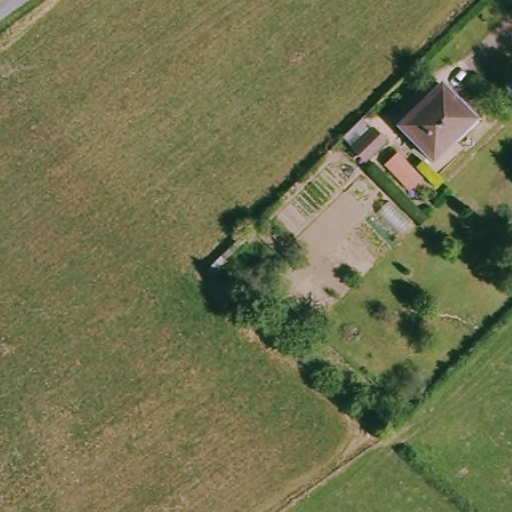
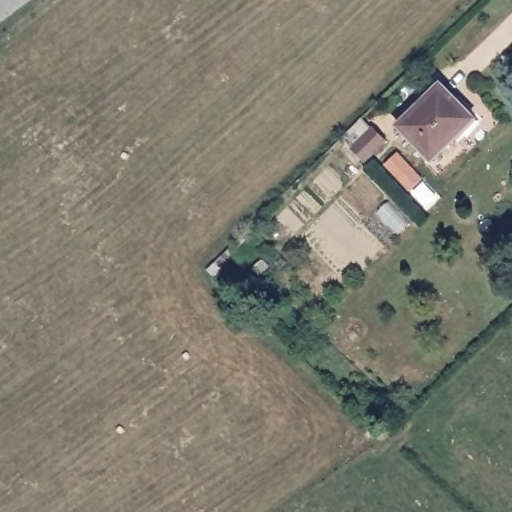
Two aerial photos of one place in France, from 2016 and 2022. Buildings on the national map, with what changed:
unchanged [(444,86),(477,119),(435,163),(400,127),(444,86)]
unchanged [(387,140),(367,161),(344,139),(365,118),(387,140)]

